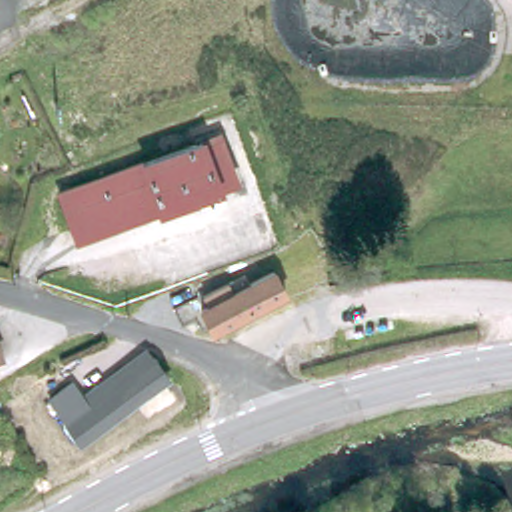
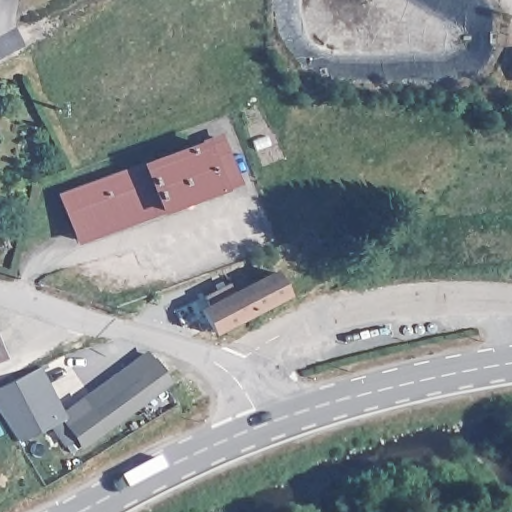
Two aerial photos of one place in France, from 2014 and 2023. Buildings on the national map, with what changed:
unchanged [(235,187),(73,238),(60,194),(220,141),(235,187)]
unchanged [(267,261),(286,302),(213,339),(212,336),(202,340),(196,328),(182,334),(175,317),(195,306),(200,316),(206,313),(201,303),(226,290),(221,276),(267,261)]
unchanged [(73,390),(81,403),(147,355),(156,367),(165,379),(167,382),(81,447),(61,418),(52,405),(73,390)]
new [(41,365),(59,401),(52,405),(61,418),(80,445),(67,452),(47,427),(16,442),(0,416),(0,385),(41,365)]

